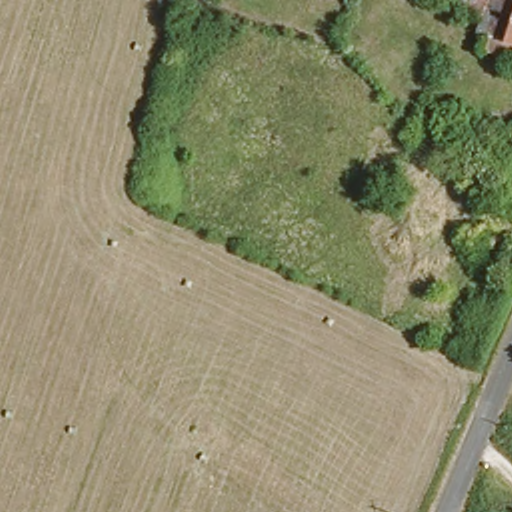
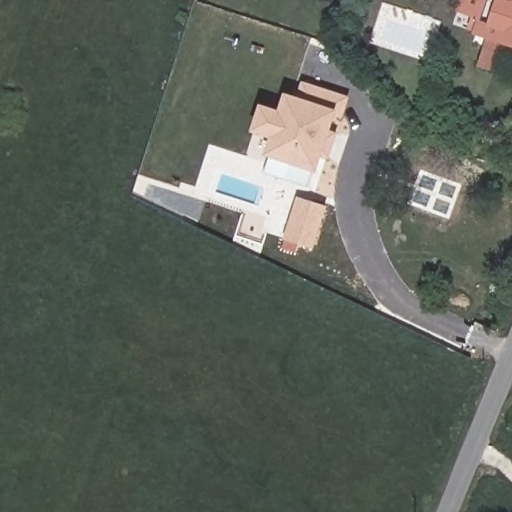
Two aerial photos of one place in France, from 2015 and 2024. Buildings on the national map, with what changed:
unchanged [(483,28),(491,0),(512,0),(512,56),(491,49),(496,33),(483,28)]
new [(336,116),(331,130),(338,133),(329,159),(323,157),(317,173),(314,172),(308,187),(265,172),(270,158),(264,155),(270,138),(252,131),(261,104),(279,109),(285,93),(296,95),(302,80),(350,96),(344,119),(336,116)]
new [(298,196),(327,207),(313,248),(284,238),(298,196)]

